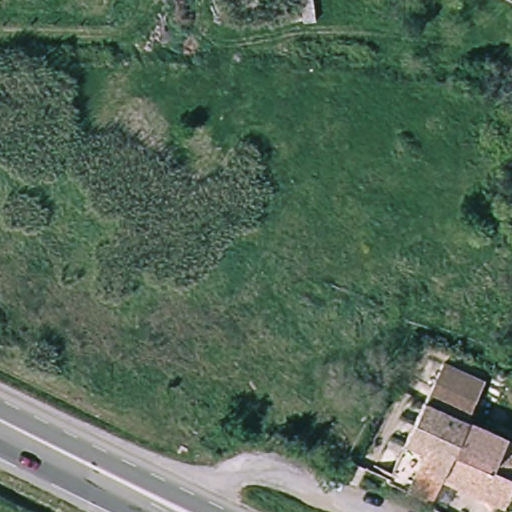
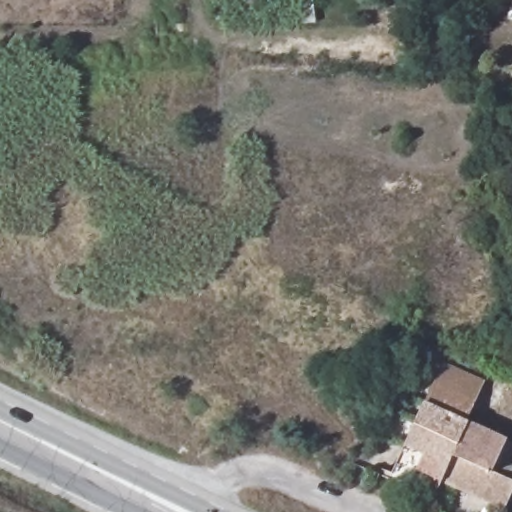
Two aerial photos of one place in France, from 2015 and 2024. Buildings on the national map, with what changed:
unchanged [(507,439),(505,442),(512,445),(512,452),(506,466),(512,469),(512,492),(504,508),(442,481),(432,502),(388,482),(442,366),(484,385),(468,421),(507,439)]

